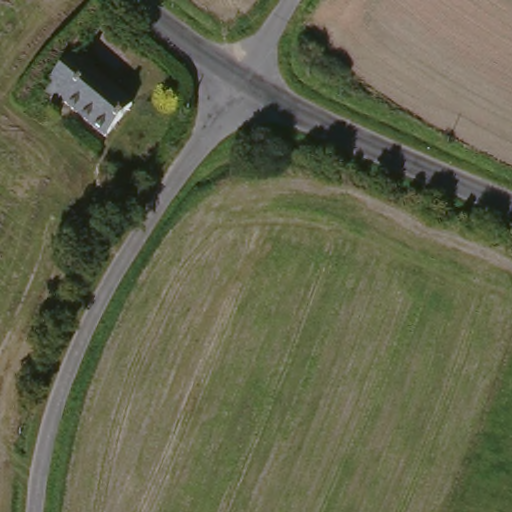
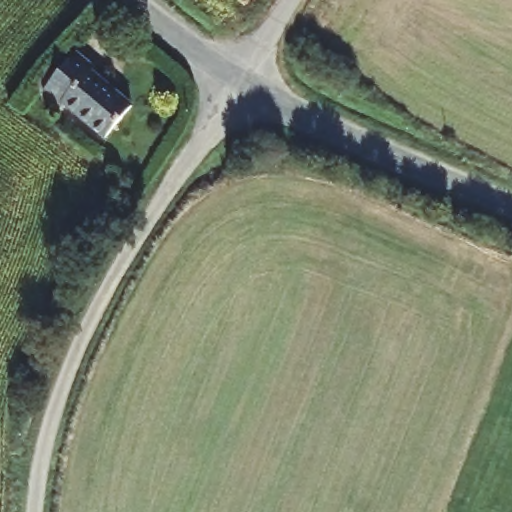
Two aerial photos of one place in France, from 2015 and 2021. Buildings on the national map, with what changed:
unchanged [(107,137),(67,104),(66,105),(47,90),(76,52),(92,65),(90,69),(133,104),(107,137)]

